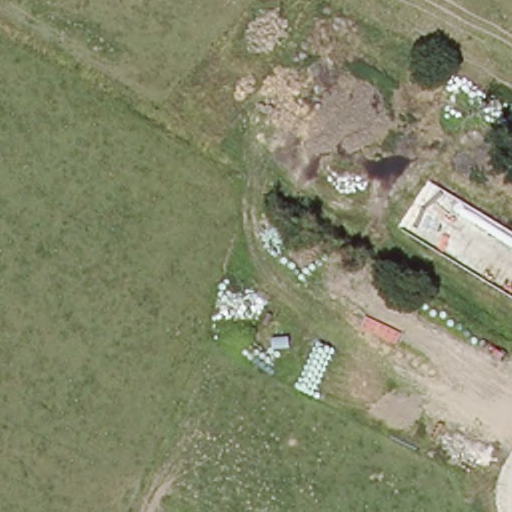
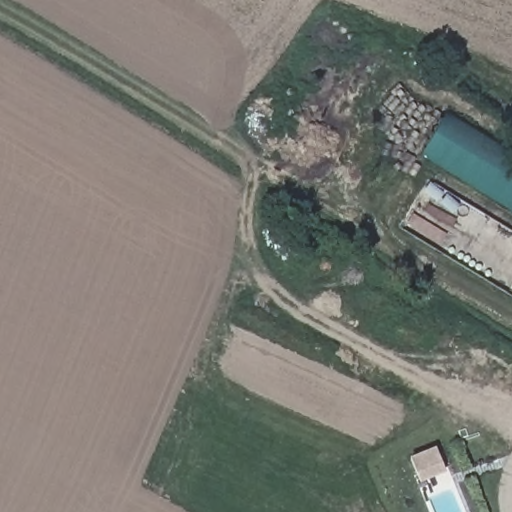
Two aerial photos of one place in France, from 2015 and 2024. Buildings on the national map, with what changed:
new [(422,156),(447,112),(512,151),(512,212),(422,156)]

